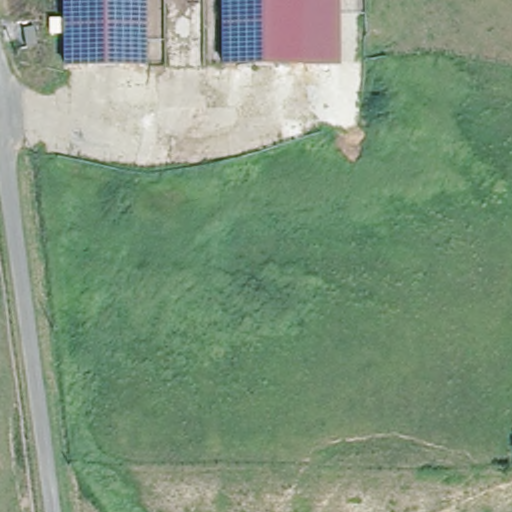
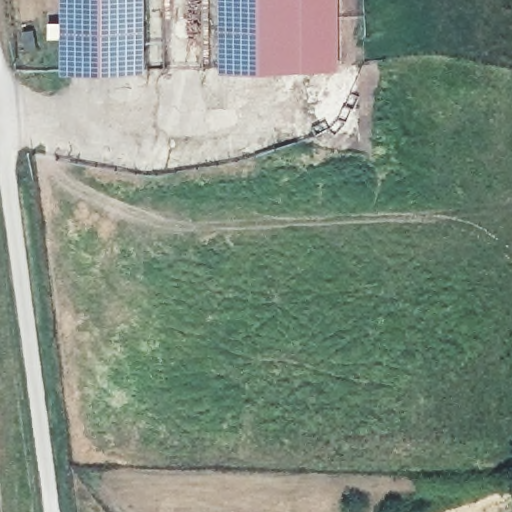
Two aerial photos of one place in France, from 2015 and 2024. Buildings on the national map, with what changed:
unchanged [(66,59),(66,0),(150,0),(150,59),(66,59)]
unchanged [(223,67),(222,0),(342,0),(343,65),(223,67)]

